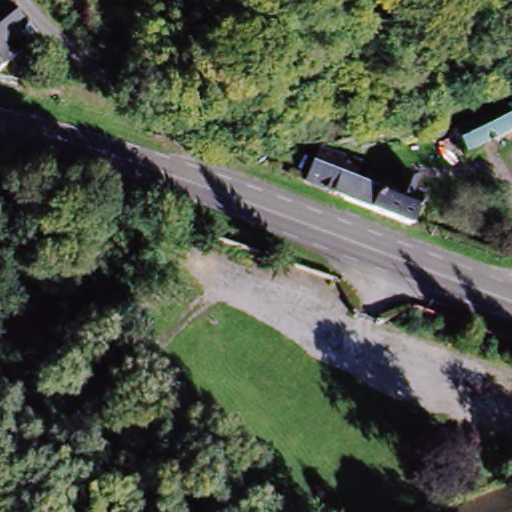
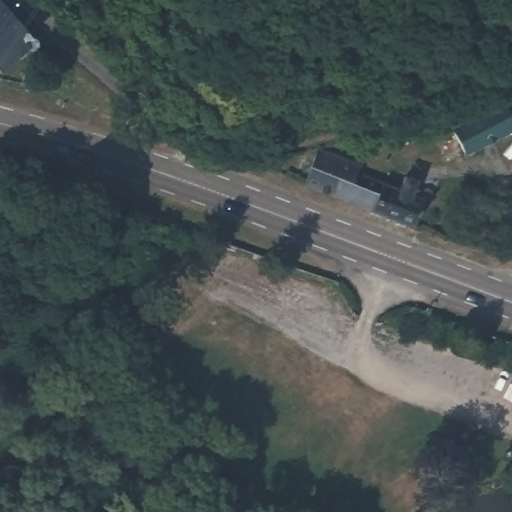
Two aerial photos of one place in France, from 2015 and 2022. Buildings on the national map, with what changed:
unchanged [(31,51),(1,74),(0,72),(0,14),(10,25),(31,51)]
unchanged [(512,124),(479,145),(466,154),(452,132),(499,102),(512,124)]
unchanged [(311,144),(351,162),(368,151),(378,159),(364,174),(399,189),(404,180),(420,187),(416,199),(426,203),(412,237),(383,224),(332,203),(291,185),(311,144)]

